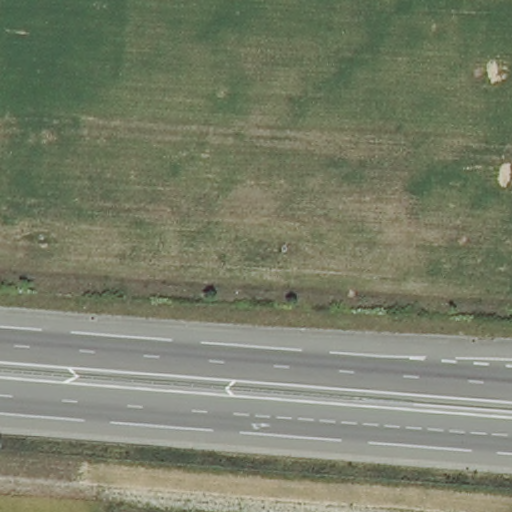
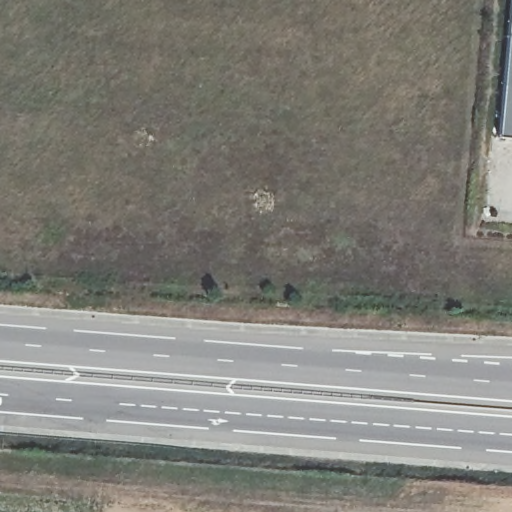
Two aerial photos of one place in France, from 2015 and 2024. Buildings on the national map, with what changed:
new [(512,0),(512,138),(498,136),(511,0),(512,0)]

